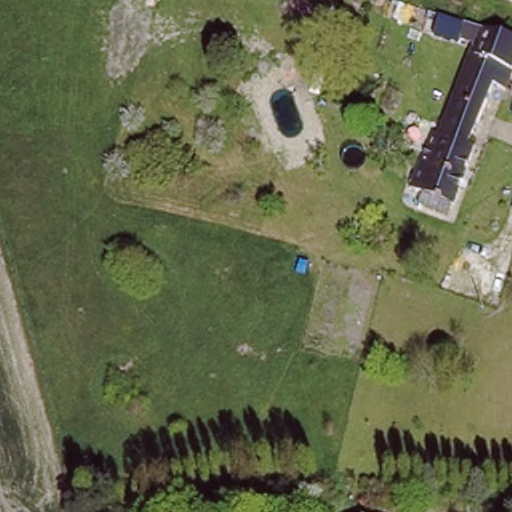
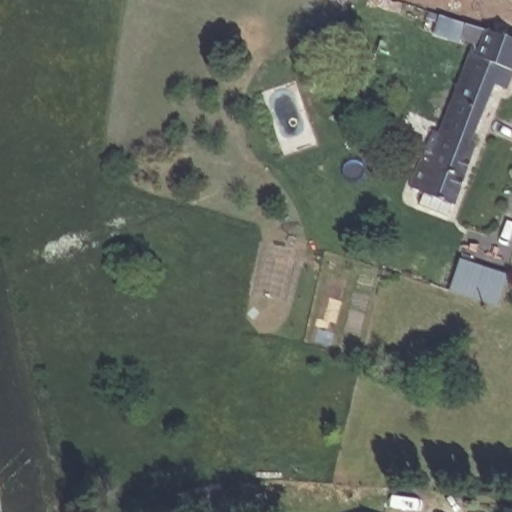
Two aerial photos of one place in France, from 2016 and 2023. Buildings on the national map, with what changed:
unchanged [(509,5),(502,0),(512,0),(509,5)]
unchanged [(421,191),(423,185),(409,180),(430,129),(435,130),(464,56),(470,41),(455,36),(463,17),(478,22),(485,25),(512,35),(512,59),(509,66),(504,85),(493,81),(473,130),(479,135),(452,201),(446,199),(441,211),(418,204),(421,191)]
new [(462,261),(502,273),(493,302),(453,290),(462,261)]

